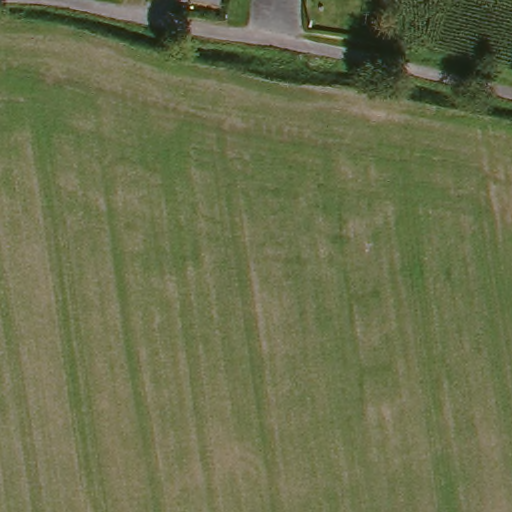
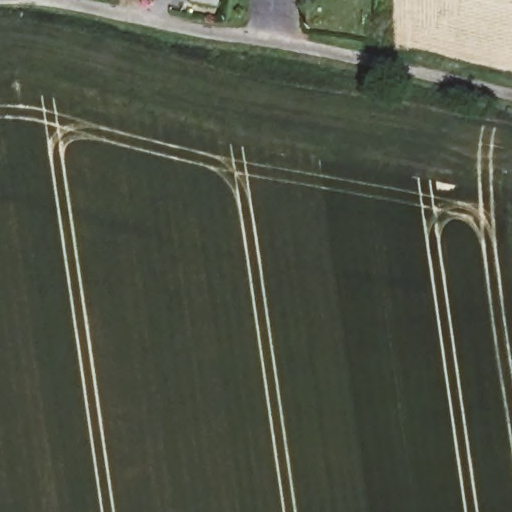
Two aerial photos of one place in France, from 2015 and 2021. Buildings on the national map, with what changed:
unchanged [(192,0),(222,0),(221,6),(192,1),(192,0)]

